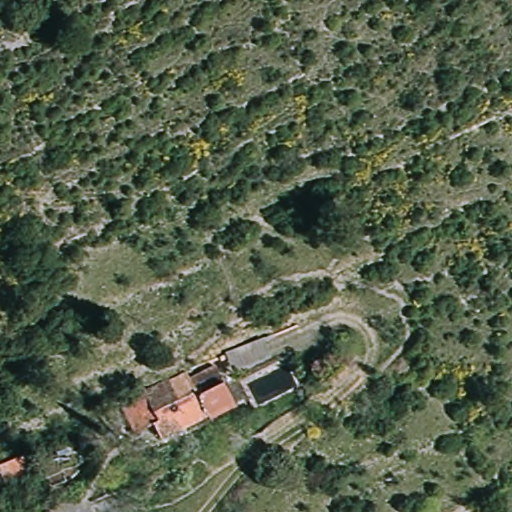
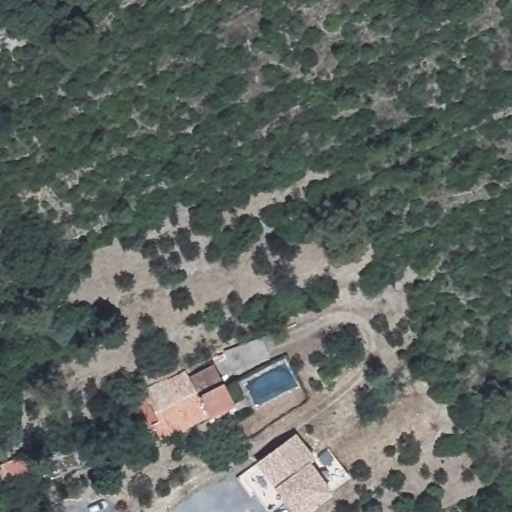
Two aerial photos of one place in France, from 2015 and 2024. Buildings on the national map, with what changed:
unchanged [(149,427),(132,434),(120,410),(145,398),(143,391),(164,382),(170,384),(187,376),(189,381),(216,370),(231,407),(175,431),(156,440),(149,427)]
new [(257,504),(239,477),(278,451),(298,435),(317,460),(310,466),(331,496),(310,511),(308,512),(287,512),(282,505),(272,512),(261,512),(256,504),(257,504)]

